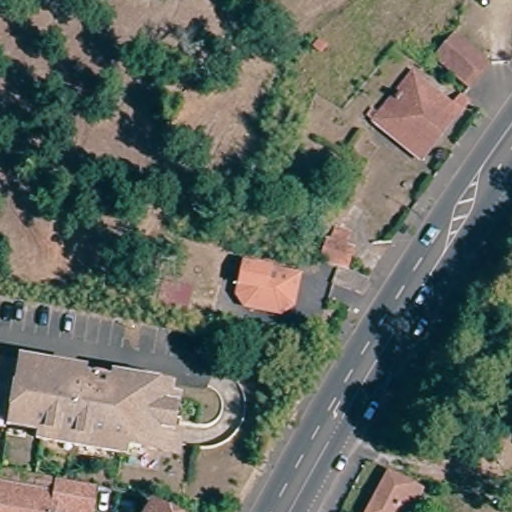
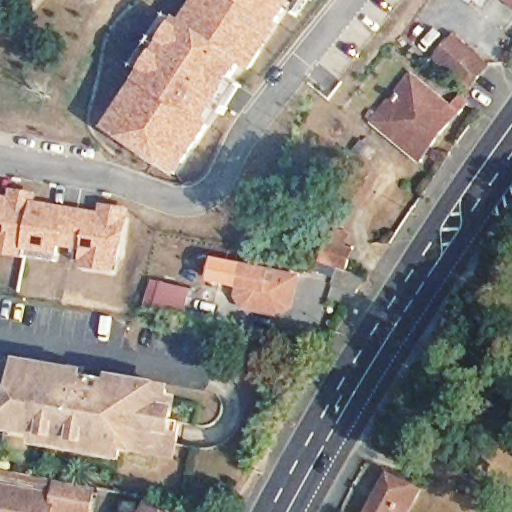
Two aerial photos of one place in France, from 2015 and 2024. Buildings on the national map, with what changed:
new [(285,24),(254,69),(246,62),(210,117),(215,122),(176,175),(102,126),(178,17),(191,0),(248,0),(277,19),(285,24)]
new [(285,9),(277,19),(248,0),(308,0),(296,17),(285,9)]
unchanged [(470,89),(438,59),(456,38),(490,66),(470,89)]
unchanged [(462,98),(468,102),(419,162),(374,124),(413,76),(452,109),(461,97),(462,98)]
demolished [(266,132),(279,107),(293,114),(280,140),(266,132)]
unchanged [(334,140),(327,150),(314,138),(320,130),(334,140)]
new [(7,201),(11,187),(36,192),(35,202),(99,211),(100,203),(130,208),(122,266),(116,265),(114,276),(82,270),(85,252),(63,247),(62,253),(28,249),(27,259),(0,254),(0,199),(7,201)]
unchanged [(330,260),(336,245),(321,241),(326,217),(329,205),(349,209),(346,222),(352,223),(347,247),(366,251),(355,270),(330,260)]
unchanged [(283,302),(272,307),(235,299),(230,289),(236,258),(289,270),(283,302)]
new [(153,277),(196,286),(187,317),(146,307),(153,277)]
unchanged [(43,431),(27,428),(0,423),(0,357),(23,361),(70,370),(71,367),(88,369),(87,372),(112,377),(127,380),(169,387),(167,397),(176,398),(173,417),(183,418),(177,454),(142,448),(125,445),(123,455),(41,441),(43,431)]
unchanged [(35,472),(34,478),(0,472),(0,465),(35,472)]
unchanged [(53,490),(55,475),(92,482),(86,512),(75,512),(49,507),(49,512),(0,512),(0,481),(53,490)]
unchanged [(421,492),(410,512),(370,512),(390,476),(421,492)]
unchanged [(152,510),(157,512),(151,512),(152,510)]

